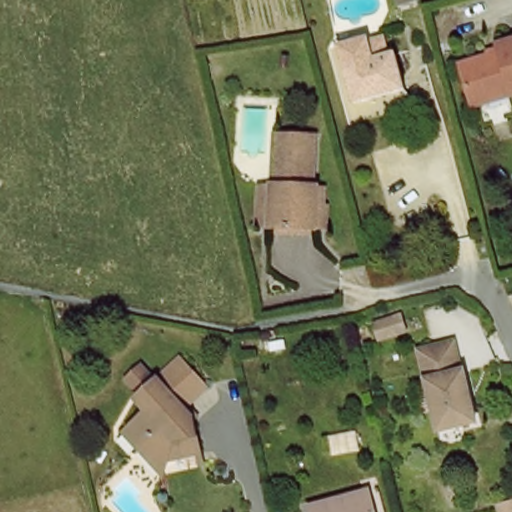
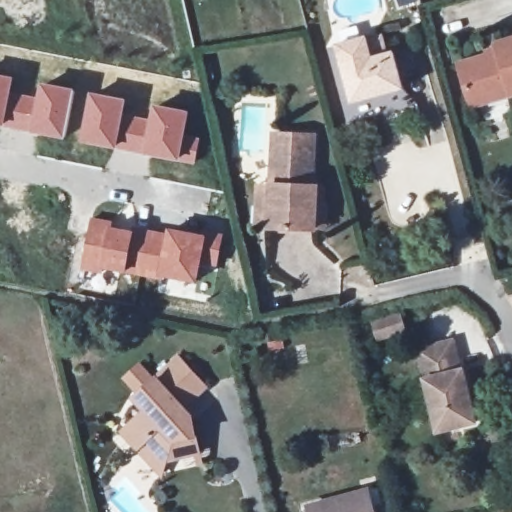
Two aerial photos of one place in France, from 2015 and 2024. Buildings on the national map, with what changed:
unchanged [(471,101),(461,65),(501,53),(499,46),(512,42),(512,98),(473,109),(471,101)]
unchanged [(405,90),(353,103),(344,66),(395,53),(405,90)]
new [(12,92),(4,127),(0,127),(0,73),(14,76),(12,92)]
new [(12,92),(37,96),(39,82),(76,88),(65,139),(4,127),(12,92)]
new [(89,91),(128,98),(125,113),(117,149),(79,142),(89,91)]
new [(125,113),(148,117),(151,103),(191,110),(186,133),(201,136),(196,164),(117,149),(125,113)]
unchanged [(322,231),(313,231),(268,229),(255,228),(256,185),(269,186),(271,135),(311,137),(309,187),(314,187),(324,188),(322,231)]
new [(90,216),(113,220),(112,226),(134,228),(126,274),(79,268),(90,216)]
new [(166,231),(166,226),(224,234),(218,266),(201,264),(198,284),(158,278),(166,231)]
new [(134,228),(166,231),(158,278),(126,274),(134,228)]
unchanged [(457,346),(464,375),(466,375),(479,426),(442,435),(423,354),(457,346)]
unchanged [(191,420),(199,455),(168,463),(149,442),(143,447),(128,430),(156,404),(146,391),(186,352),(214,380),(188,405),(191,419),(191,420)]
new [(139,360),(153,375),(133,393),(119,377),(139,360)]
unchanged [(309,512),(308,506),(366,494),(371,512),(309,512)]

